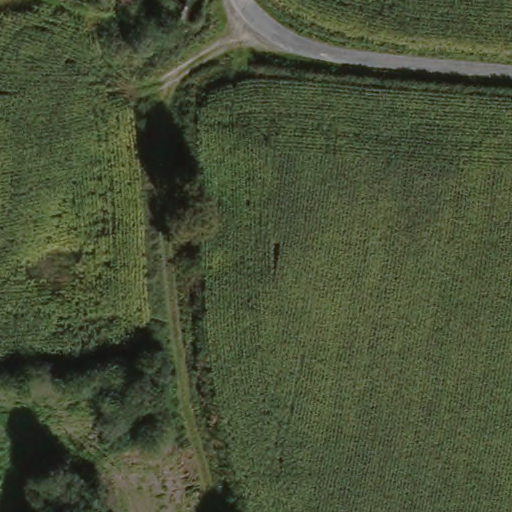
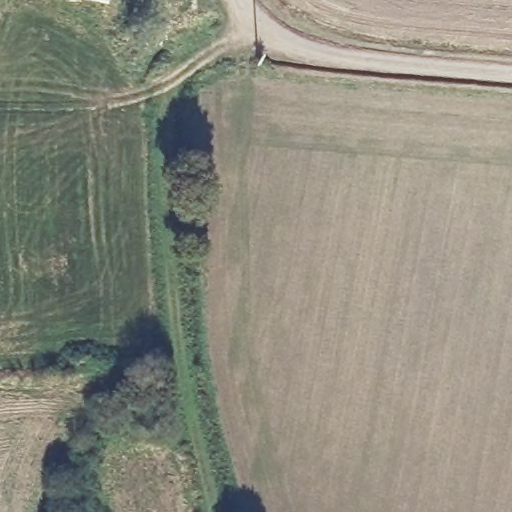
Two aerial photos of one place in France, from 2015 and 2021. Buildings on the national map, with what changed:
unchanged [(132,0),(131,8),(108,3),(108,0),(132,0)]

